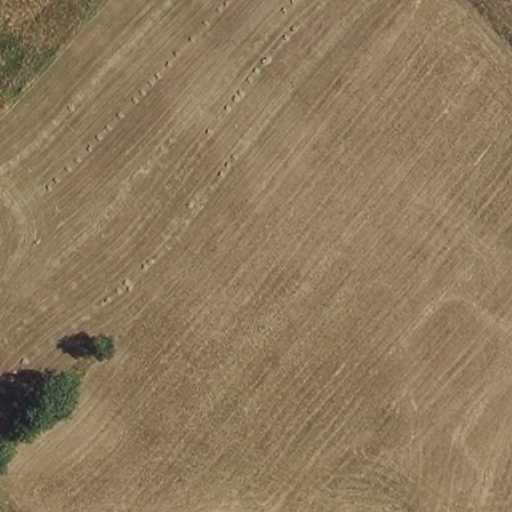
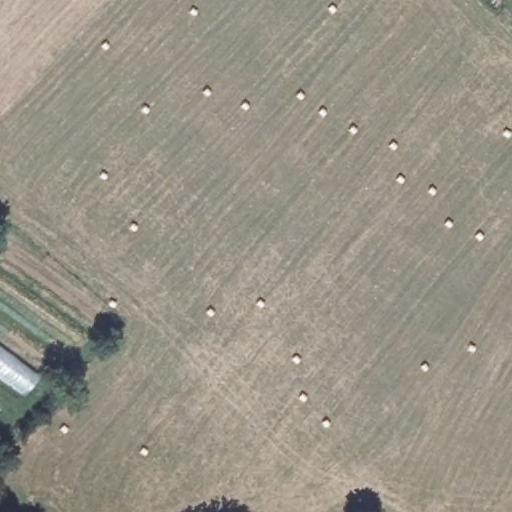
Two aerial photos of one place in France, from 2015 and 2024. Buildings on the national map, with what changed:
new [(42,377),(27,399),(0,379),(0,346),(42,377)]

